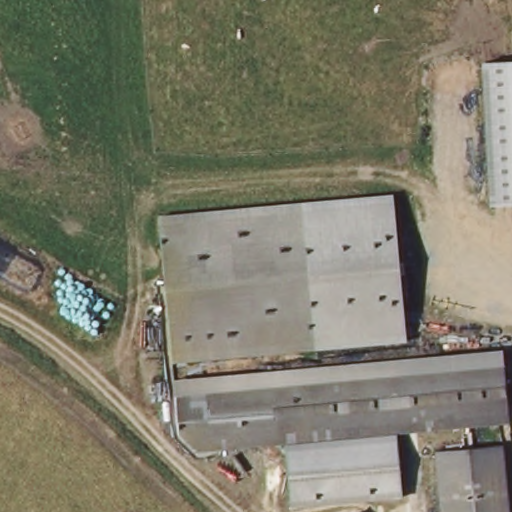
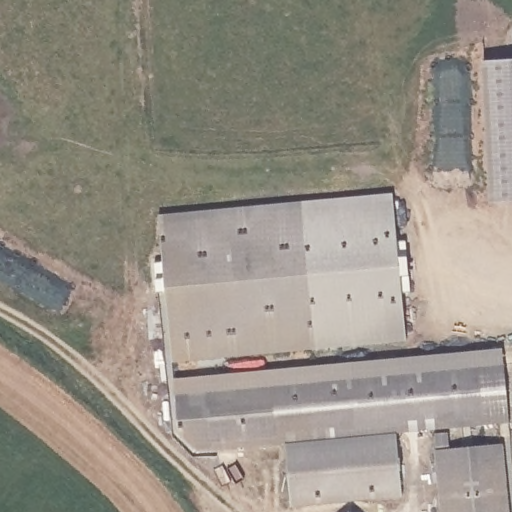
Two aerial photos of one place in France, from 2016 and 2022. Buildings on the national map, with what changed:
unchanged [(490,205),(483,62),(512,61),(512,204),(490,205)]
unchanged [(407,193),(419,340),(325,347),(314,201),(407,193)]
unchanged [(309,206),(320,352),(175,363),(164,217),(309,206)]
unchanged [(505,352),(506,367),(179,393),(178,379),(505,352)]
unchanged [(181,433),(179,393),(506,367),(512,423),(199,451),(181,433)]
unchanged [(396,434),(400,498),(291,508),(285,443),(396,434)]
unchanged [(436,452),(502,444),(508,512),(441,512),(436,452)]

